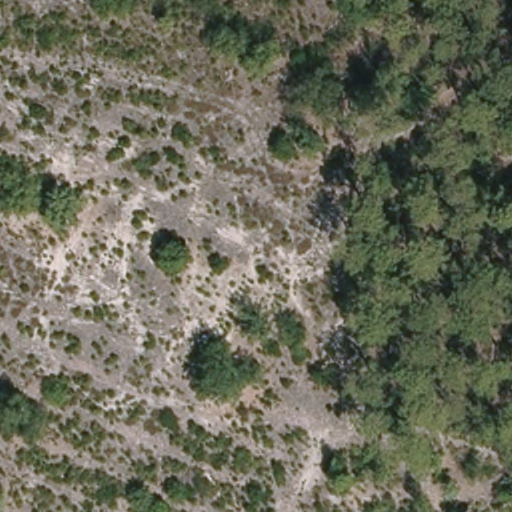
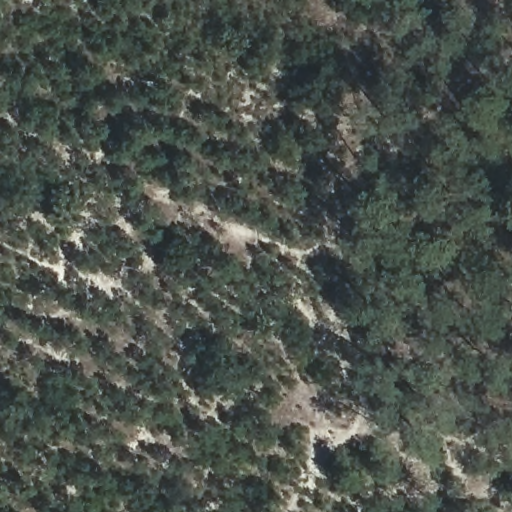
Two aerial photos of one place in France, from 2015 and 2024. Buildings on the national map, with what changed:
[]

